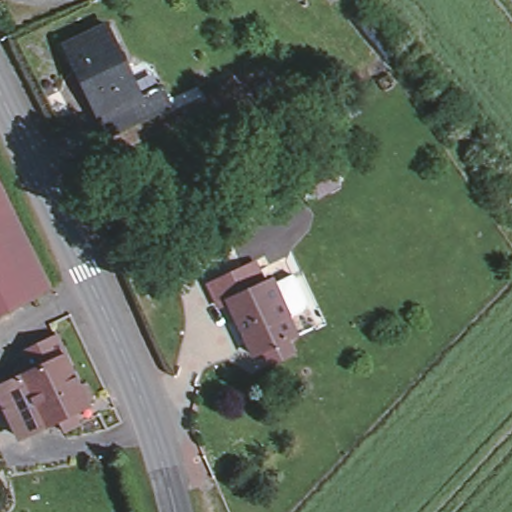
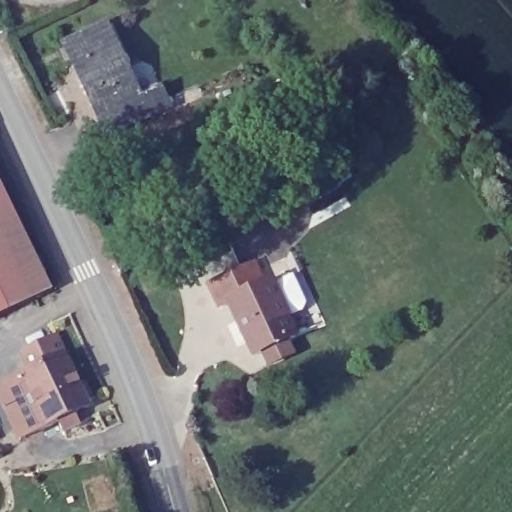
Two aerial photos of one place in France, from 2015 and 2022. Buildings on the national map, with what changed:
unchanged [(66,44),(108,25),(141,95),(160,86),(168,105),(108,134),(66,44)]
unchanged [(0,313),(0,196),(45,290),(0,313)]
unchanged [(225,221),(220,212),(238,201),(243,210),(225,221)]
unchanged [(282,344),(288,357),(265,368),(259,355),(249,360),(224,308),(216,311),(205,290),(250,269),(260,288),(266,285),(267,288),(278,283),(287,279),(301,306),(298,313),(296,314),(282,320),(291,339),(282,344)]
unchanged [(55,421),(41,427),(18,377),(28,372),(20,353),(23,352),(51,338),(54,337),(62,355),(76,385),(81,383),(89,400),(85,402),(86,406),(71,413),(76,425),(60,433),(55,421)]
unchanged [(4,445),(0,436),(0,386),(18,377),(41,427),(4,445)]

